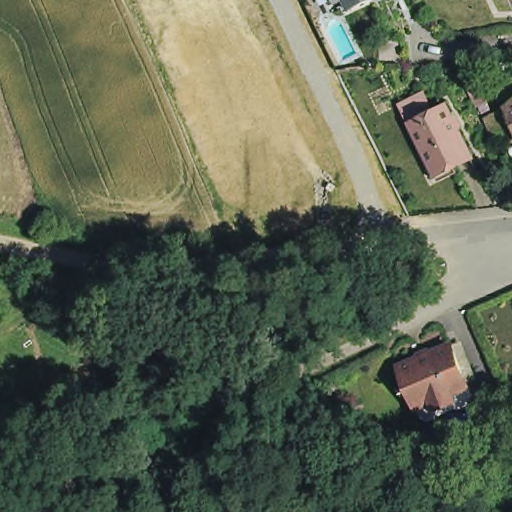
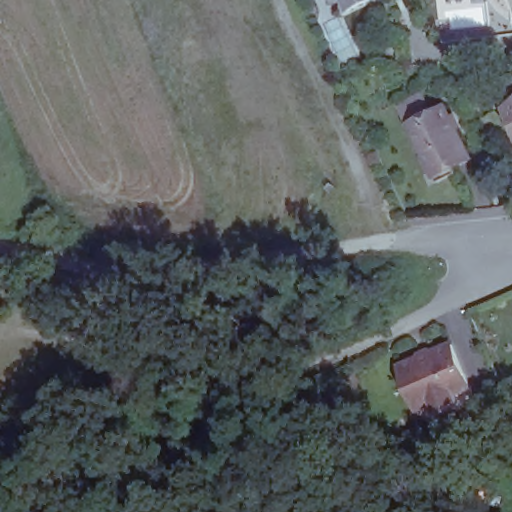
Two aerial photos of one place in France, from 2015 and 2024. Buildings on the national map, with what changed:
unchanged [(332,0),(375,0),(349,13),(343,2),(340,4),(335,6),(332,0)]
unchanged [(378,53),(376,38),(405,37),(407,51),(409,66),(380,68),(378,53)]
unchanged [(506,109),(510,106),(504,99),(500,99),(490,75),(512,74),(512,123),(506,109)]
unchanged [(428,170),(405,122),(396,105),(418,95),(426,112),(435,107),(440,105),(446,117),(449,117),(455,127),(452,130),(466,157),(450,166),(452,172),(434,182),(428,170)]
unchanged [(417,403),(401,362),(452,342),(470,382),(475,392),(452,402),(445,405),(421,413),(417,403)]

